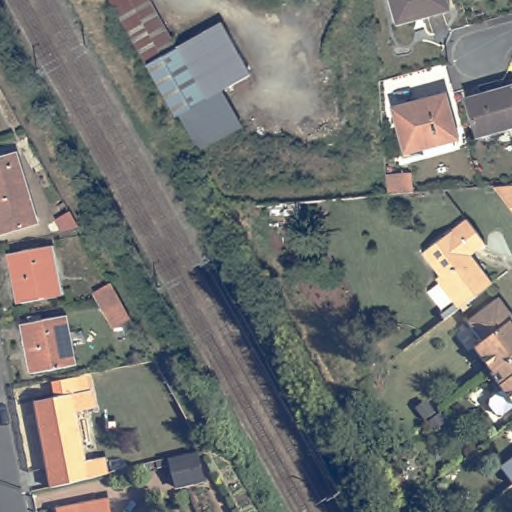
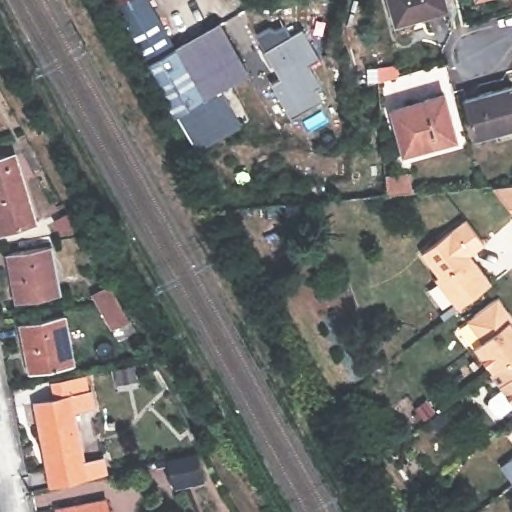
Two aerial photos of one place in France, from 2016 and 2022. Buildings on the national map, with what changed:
unchanged [(109,0),(148,0),(175,48),(220,23),(249,75),(221,90),(241,126),(202,148),(183,112),(175,116),(174,115),(109,0)]
unchanged [(395,25),(388,0),(445,0),(448,10),(395,25)]
new [(302,29),(319,60),(309,66),(320,87),(315,90),(322,102),(290,120),(270,84),(279,79),(264,50),(302,29)]
unchanged [(480,137),(469,99),(512,87),(512,129),(480,137)]
unchanged [(403,153),(392,109),(444,95),(456,140),(403,153)]
unchanged [(4,234),(0,222),(0,160),(20,154),(40,223),(4,234)]
unchanged [(410,172),(412,192),(386,195),(384,175),(410,172)]
unchanged [(512,184),(512,213),(491,186),(512,184)]
unchanged [(65,231),(59,220),(74,211),(79,220),(84,227),(65,231)]
unchanged [(440,280),(444,277),(426,254),(471,220),(489,245),(474,255),(481,263),(496,283),(462,309),(440,280)]
unchanged [(6,257),(50,250),(61,300),(15,308),(6,257)]
unchanged [(96,305),(93,298),(110,288),(120,305),(130,322),(113,332),(103,315),(96,305)]
unchanged [(497,371),(479,347),(487,341),(472,320),(503,297),(512,309),(512,360),(497,371)]
unchanged [(25,330),(29,329),(28,326),(33,325),(33,322),(45,320),(46,325),(69,320),(79,369),(35,378),(25,330)]
unchanged [(114,333),(131,325),(135,333),(117,341),(114,333)]
unchanged [(507,415),(501,414),(494,405),(496,400),(508,390),(495,372),(496,372),(497,371),(512,360),(512,411),(507,415)]
unchanged [(81,394),(90,392),(91,397),(95,397),(98,411),(78,415),(88,467),(108,463),(111,478),(55,491),(44,428),(40,407),(45,406),(82,400),(81,394)]
unchanged [(175,486),(169,460),(197,453),(203,479),(175,486)]
unchanged [(109,508),(110,512),(91,512),(109,508)]

